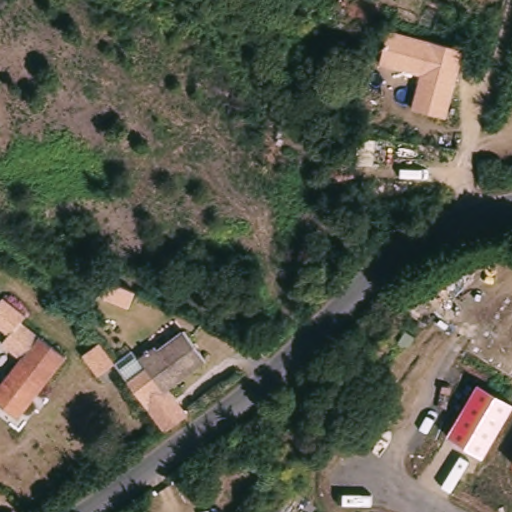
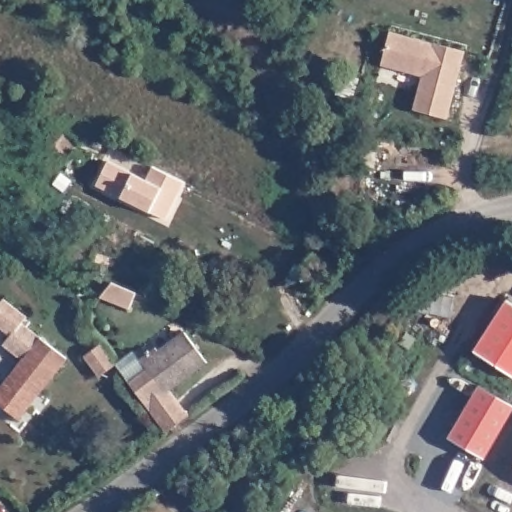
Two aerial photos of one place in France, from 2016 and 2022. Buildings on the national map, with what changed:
unchanged [(464,52),(447,120),(410,111),(420,76),(380,66),(389,32),(464,52)]
new [(110,165),(148,183),(155,169),(186,184),(167,222),(99,188),(110,165)]
unchanged [(60,365),(19,418),(0,405),(0,385),(1,386),(24,356),(5,341),(11,333),(0,324),(0,303),(5,296),(28,314),(23,320),(67,356),(60,365)]
new [(507,300),(512,303),(512,375),(473,351),(507,300)]
unchanged [(155,343),(160,349),(185,328),(208,360),(167,389),(164,391),(137,356),(155,343)]
unchanged [(417,337),(410,347),(400,341),(407,330),(417,337)]
new [(105,339),(116,361),(98,371),(86,348),(105,339)]
unchanged [(133,350),(137,356),(164,391),(167,389),(186,415),(162,433),(115,365),(133,350)]
unchanged [(447,437),(477,384),(512,405),(512,411),(483,459),(447,437)]

